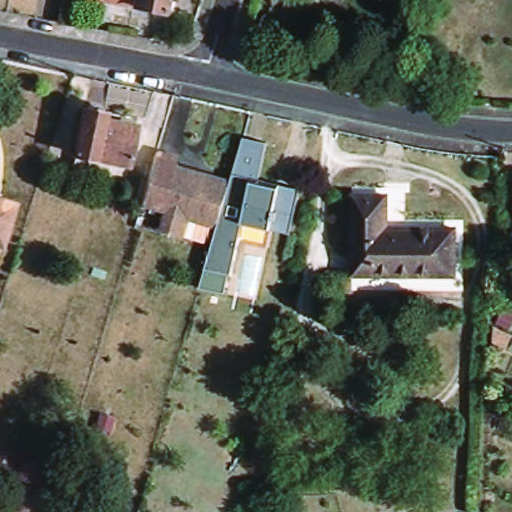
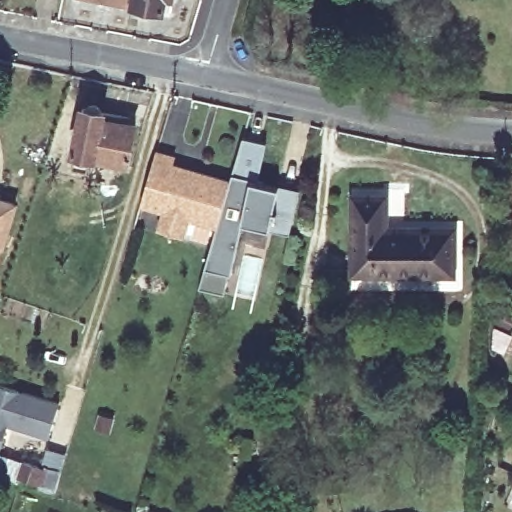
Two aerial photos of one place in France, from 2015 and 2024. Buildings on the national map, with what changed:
unchanged [(129,169),(73,157),(82,111),(114,118),(114,125),(136,129),(129,169)]
unchanged [(292,231),(271,227),(244,221),(233,273),(205,267),(212,245),(217,226),(228,189),(231,180),(244,135),(268,140),(260,177),(265,179),(264,183),(280,186),(301,190),(292,231)]
unchanged [(228,189),(217,226),(179,215),(175,229),(156,223),(160,209),(141,203),(157,151),(176,156),(173,164),(191,169),(200,171),(231,180),(228,189)]
unchanged [(454,280),(352,278),(352,199),(388,199),(388,232),(455,234),(454,280)]
unchanged [(19,206),(5,250),(0,248),(0,200),(19,206)]
new [(48,438),(6,426),(0,452),(0,385),(59,403),(48,438)]
unchanged [(8,480),(0,478),(0,460),(14,465),(8,480)]
unchanged [(41,488),(21,482),(27,465),(46,471),(41,488)]

